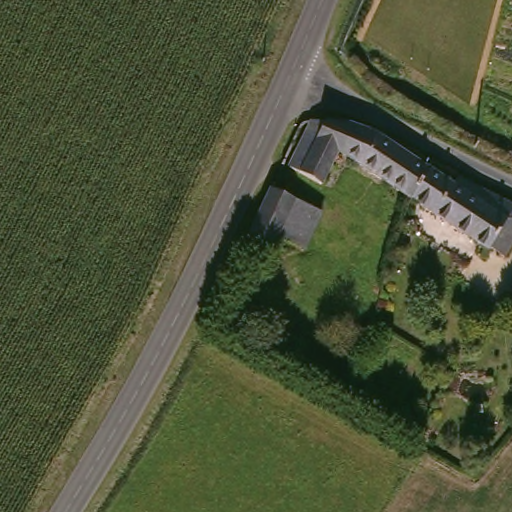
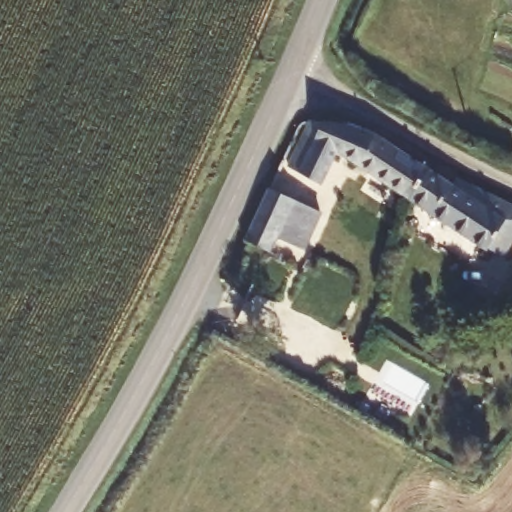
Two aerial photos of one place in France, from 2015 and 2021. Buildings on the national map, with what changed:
unchanged [(511,35),(512,31),(512,35),(511,35)]
unchanged [(342,147),(327,180),(293,162),(305,117),(313,115),(354,120),(382,130),(434,165),(416,195),(342,147)]
unchanged [(509,255),(416,195),(434,165),(458,180),(463,175),(512,199),(512,249),(509,255)]
unchanged [(270,185),(309,202),(291,239),(278,232),(270,248),(247,236),(270,185)]

